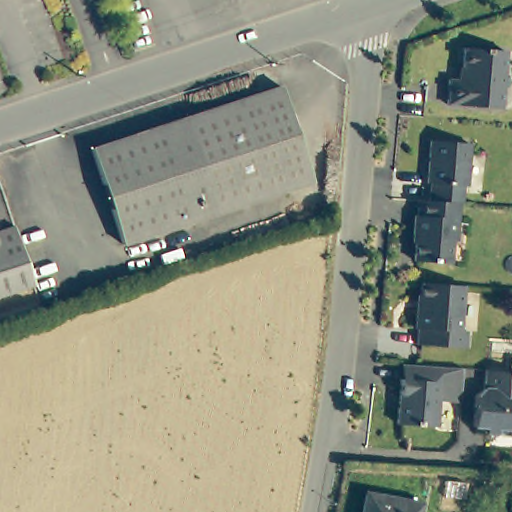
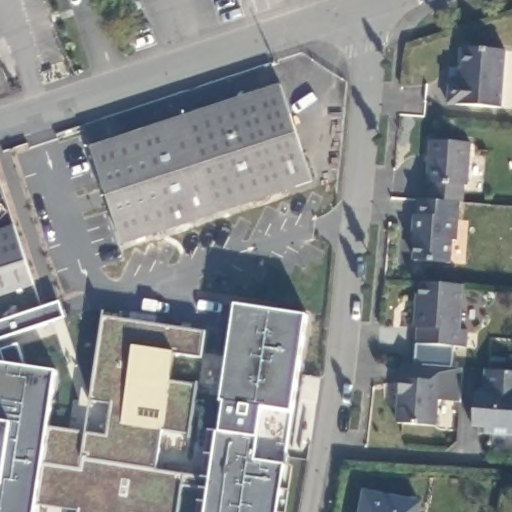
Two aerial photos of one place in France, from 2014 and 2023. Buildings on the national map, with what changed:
unchanged [(510,49),(505,107),(455,103),(456,78),(466,78),(469,45),(510,49)]
unchanged [(314,180),(124,242),(92,146),(282,84),(314,180)]
unchanged [(430,199),(431,182),(428,181),(431,141),(472,144),(468,184),(465,184),(463,202),(460,202),(430,199)]
unchanged [(460,202),(457,240),(451,240),(450,262),(415,260),(417,234),(414,234),(415,215),(418,216),(420,199),(430,199),(460,202)]
unchanged [(35,283),(0,295),(0,228),(16,223),(35,283)]
unchanged [(465,284),(461,329),(471,330),(468,347),(418,342),(419,326),(415,325),(417,308),(420,308),(423,281),(465,284)]
new [(0,321),(60,301),(65,318),(0,340),(0,321)]
new [(285,466),(293,467),(286,512),(205,512),(209,489),(181,485),(177,512),(77,512),(77,511),(36,504),(35,512),(0,512),(0,363),(7,365),(1,350),(16,343),(26,367),(55,372),(46,427),(105,436),(110,404),(90,400),(101,316),(207,332),(202,358),(174,353),(170,380),(197,385),(189,434),(162,430),(155,470),(210,478),(219,433),(225,403),(221,402),(235,304),(306,316),(292,411),(285,466)]
unchanged [(465,367),(462,401),(440,399),(437,427),(399,423),(403,379),(404,363),(409,363),(443,366),(465,367)]
unchanged [(512,370),(512,436),(492,435),(493,428),(481,427),(483,396),(491,387),(492,369),(512,370)]
unchanged [(421,502),(419,512),(362,512),(366,491),(421,502)]

